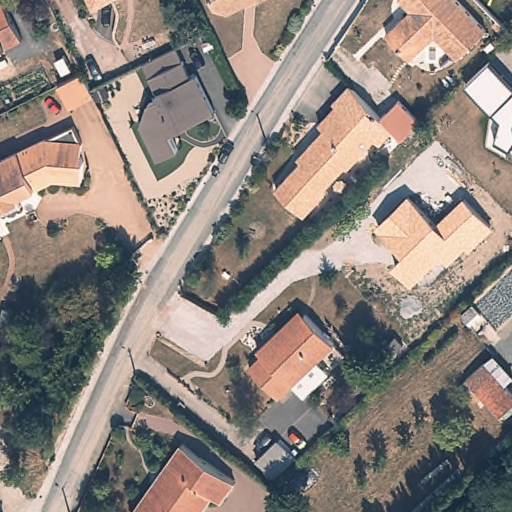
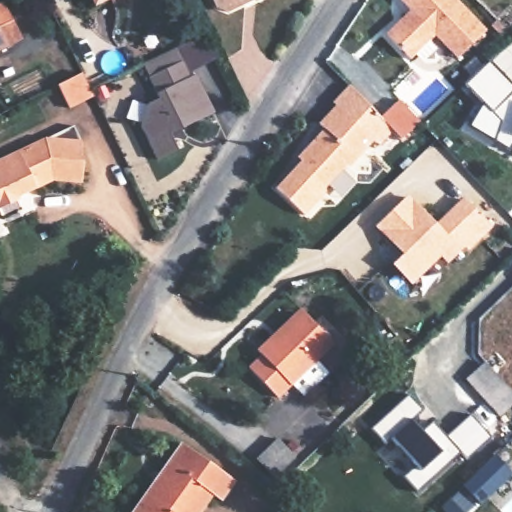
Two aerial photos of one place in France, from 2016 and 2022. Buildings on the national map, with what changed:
unchanged [(94,6),(91,0),(107,0),(94,6)]
unchanged [(264,3),(258,2),(229,16),(218,12),(212,0),(271,0),(264,3)]
unchanged [(486,30),(457,58),(435,35),(410,59),(385,34),(402,19),(405,23),(412,16),(412,8),(404,0),(456,0),(486,30)]
unchanged [(22,41),(0,52),(0,6),(5,3),(22,41)]
unchanged [(169,132),(176,150),(157,158),(142,126),(148,102),(157,98),(148,78),(182,62),(189,76),(196,73),(214,112),(169,132)]
unchanged [(496,140),(501,121),(467,84),(491,63),(512,87),(512,145),(509,150),(496,140)]
unchanged [(85,72),(96,98),(73,107),(62,84),(85,72)]
unchanged [(313,146),(335,124),(331,120),(347,103),(383,136),(358,162),(345,164),(333,177),(331,190),(308,215),(280,188),(316,150),(313,146)]
unchanged [(82,150),(85,175),(58,176),(24,192),(27,200),(19,203),(0,164),(0,157),(75,122),(81,119),(90,136),(85,144),(82,150)]
unchanged [(19,203),(9,208),(6,201),(0,203),(0,164),(19,203)]
unchanged [(470,251),(467,246),(448,264),(441,256),(413,285),(393,264),(404,254),(377,225),(409,194),(435,223),(463,197),(491,228),(470,251)]
unchanged [(284,398),(256,369),(267,359),(262,354),(275,341),(307,313),(312,318),(339,347),(284,398)]
unchanged [(469,381),(487,363),(512,390),(512,408),(503,417),(494,407),(469,381)]
new [(408,395),(421,410),(412,421),(424,434),(433,422),(447,437),(470,414),(491,437),(468,459),(460,451),(418,491),(403,474),(416,464),(394,437),(385,444),(372,428),(408,395)]
unchanged [(233,483),(219,501),(210,496),(197,512),(130,512),(183,445),(233,483)]

